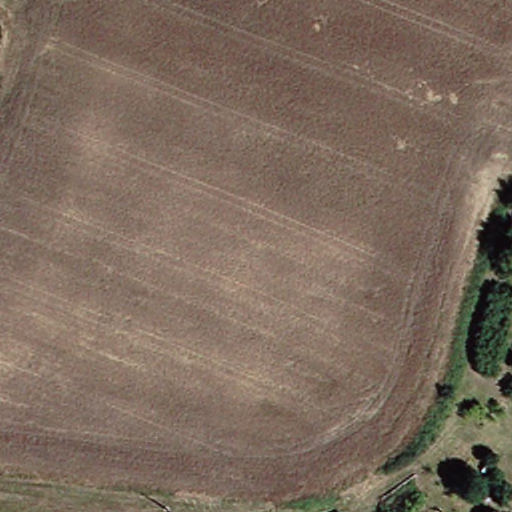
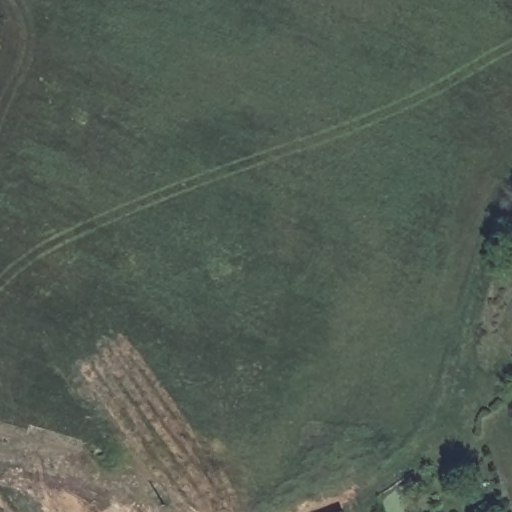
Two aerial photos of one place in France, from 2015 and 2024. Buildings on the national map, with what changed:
unchanged [(337,512),(319,512),(334,504),(337,512)]

